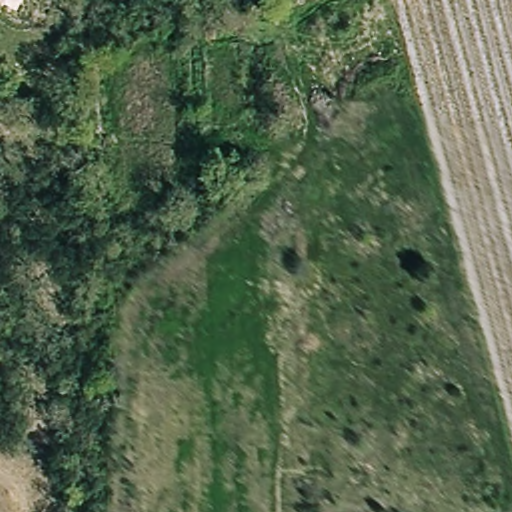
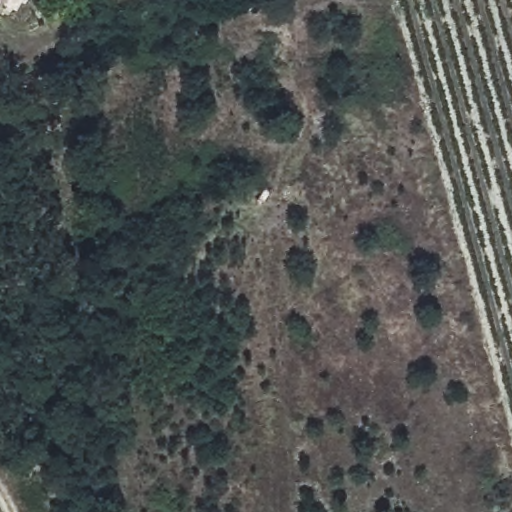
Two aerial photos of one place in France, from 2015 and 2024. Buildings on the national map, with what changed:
unchanged [(1,5),(0,5),(0,0),(4,0),(1,5)]

